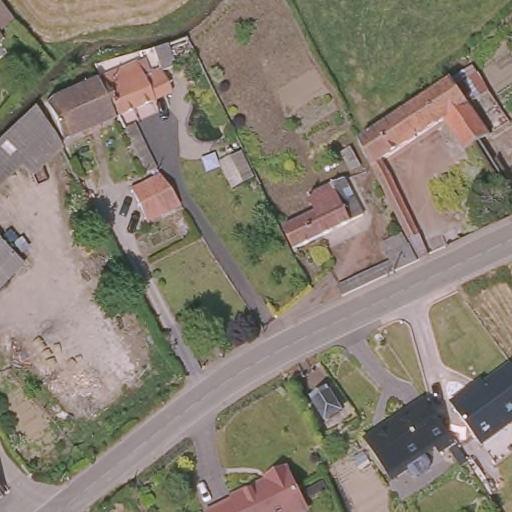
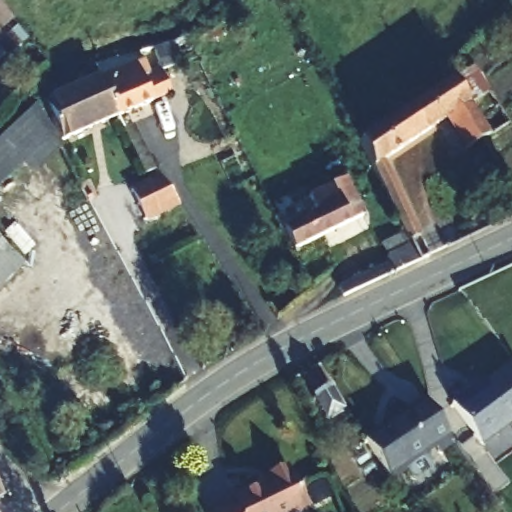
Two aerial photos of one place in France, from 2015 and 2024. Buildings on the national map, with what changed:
unchanged [(0,40),(0,0),(1,0),(20,24),(0,40)]
unchanged [(100,84),(92,67),(158,48),(176,94),(105,119),(109,126),(63,144),(47,102),(100,84)]
unchanged [(371,161),(361,143),(365,139),(463,75),(475,67),(490,92),(480,99),(472,104),(492,136),(468,150),(448,119),(383,160),(393,174),(435,255),(425,259),(371,161)]
unchanged [(66,167),(35,187),(25,174),(0,190),(0,152),(25,127),(37,114),(57,151),(66,167)]
unchanged [(127,186),(147,176),(122,125),(140,117),(185,209),(148,227),(127,186)]
unchanged [(317,214),(310,200),(332,189),(348,185),(367,218),(295,251),(285,230),(317,214)]
unchanged [(0,249),(0,246),(2,247),(0,249)]
unchanged [(403,270),(345,295),(340,283),(393,261),(392,256),(415,246),(422,261),(403,270)]
unchanged [(0,297),(0,249),(2,247),(25,272),(0,297)]
unchanged [(482,440),(452,401),(472,387),(473,390),(512,361),(512,418),(482,440)]
unchanged [(329,389),(343,411),(328,420),(315,398),(329,389)]
unchanged [(430,465),(418,472),(412,472),(408,466),(392,477),(365,437),(425,396),(455,438),(440,448),(436,442),(425,450),(427,453),(430,459),(430,465)]
unchanged [(227,501),(256,485),(260,483),(257,480),(280,468),(283,475),(302,508),(294,512),(218,512),(230,506),(227,501)]

